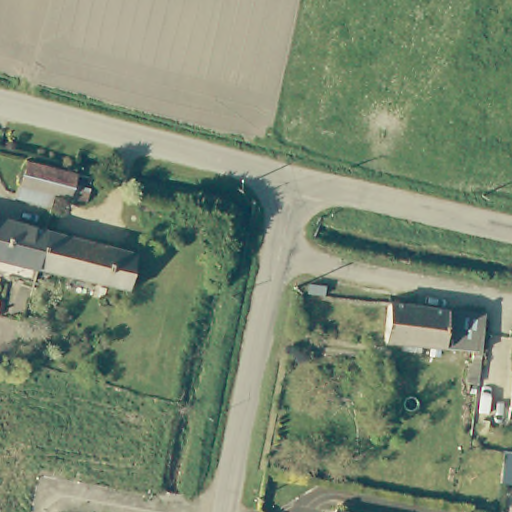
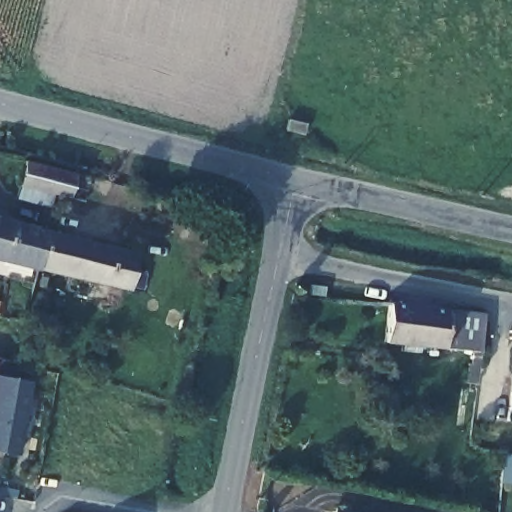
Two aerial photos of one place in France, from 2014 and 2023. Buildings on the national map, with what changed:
unchanged [(87,185),(84,197),(67,192),(54,189),(20,180),(25,160),(73,171),(89,174),(87,185)]
unchanged [(49,232),(39,270),(3,259),(0,259),(0,218),(49,232)]
unchanged [(49,232),(135,255),(124,295),(39,270),(49,232)]
unchanged [(388,343),(393,302),(454,308),(451,352),(388,343)]
unchanged [(485,357),(451,352),(454,308),(488,312),(485,357)]
new [(30,381),(17,454),(0,451),(0,375),(30,381)]
unchanged [(511,377),(512,377),(512,412),(507,412),(511,377)]
unchanged [(330,511),(336,512),(330,512),(330,511)]

